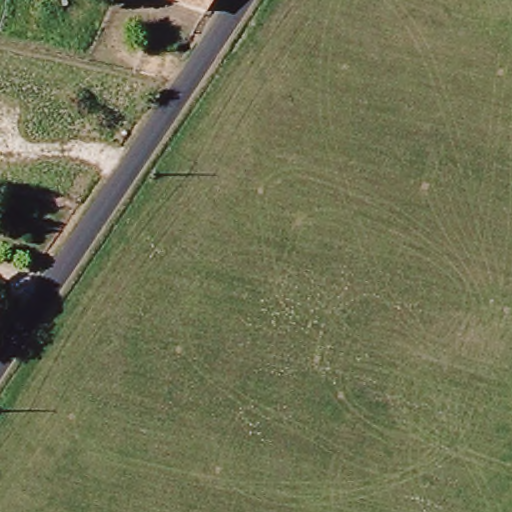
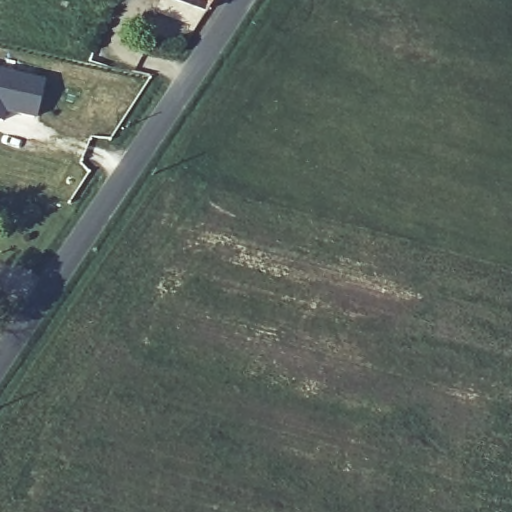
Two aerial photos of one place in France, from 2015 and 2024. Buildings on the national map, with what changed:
unchanged [(172,0),(208,0),(201,11),(172,0)]
new [(45,80),(36,121),(7,114),(0,118),(0,70),(45,80)]

